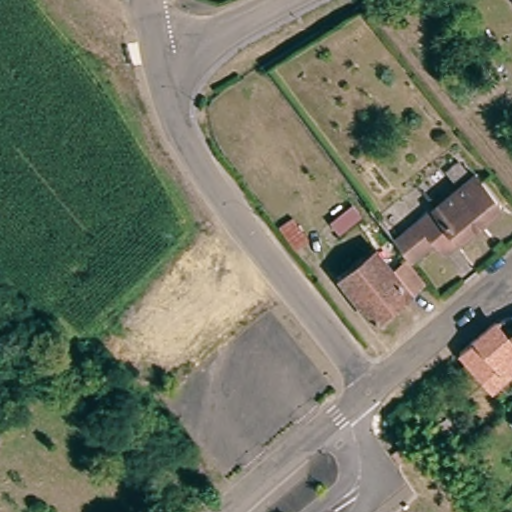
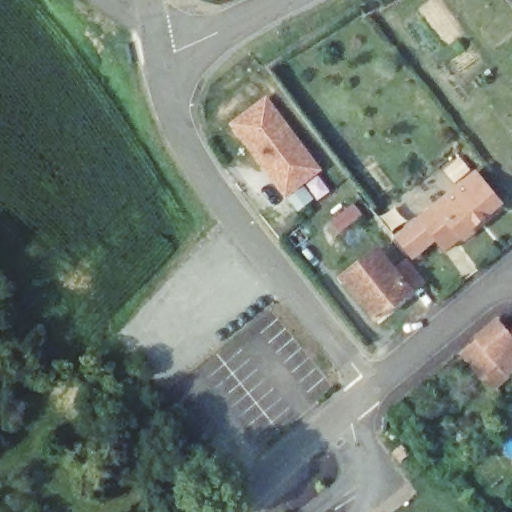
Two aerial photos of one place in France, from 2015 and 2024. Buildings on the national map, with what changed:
new [(229,124),(267,96),(323,171),(286,199),(229,124)]
unchanged [(476,174),(499,203),(443,247),(435,237),(412,255),(385,222),(410,204),(420,217),(476,174)]
unchanged [(350,200),(359,213),(335,229),(327,219),(350,200)]
unchanged [(427,279),(377,318),(345,278),(381,251),(396,269),(411,258),(427,279)]
unchanged [(509,313),(512,312),(512,376),(499,387),(466,349),(499,320),(509,313)]
unchanged [(397,402),(405,411),(392,423),(384,414),(397,402)]
unchanged [(383,416),(389,424),(381,431),(374,422),(383,416)]
unchanged [(392,425),(398,433),(390,439),(384,432),(392,425)]
unchanged [(402,444),(409,453),(400,461),(393,452),(402,444)]

